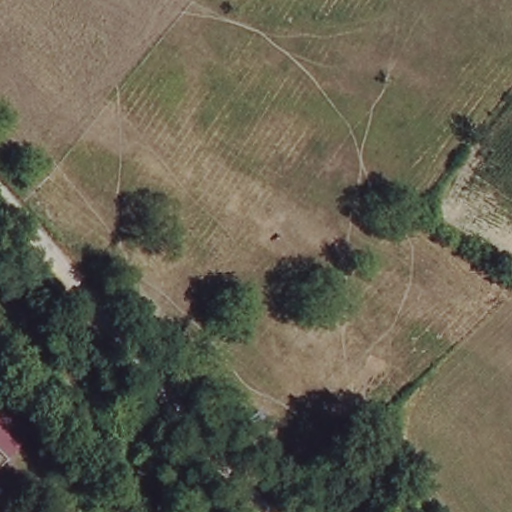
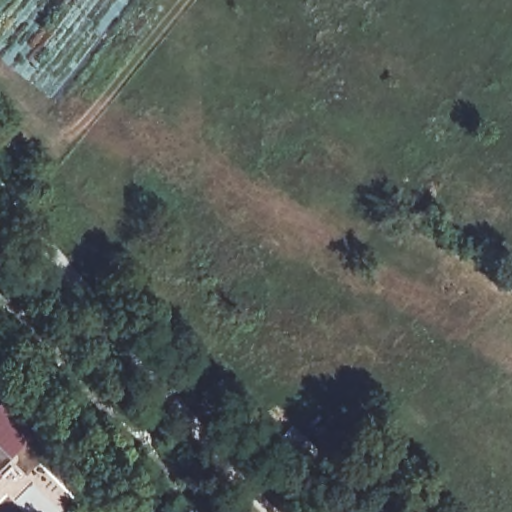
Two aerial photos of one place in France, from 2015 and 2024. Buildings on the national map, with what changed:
unchanged [(1,406),(6,402),(37,434),(30,440),(11,459),(0,448),(0,406),(1,406)]
unchanged [(11,459),(0,469),(0,448),(11,459)]

